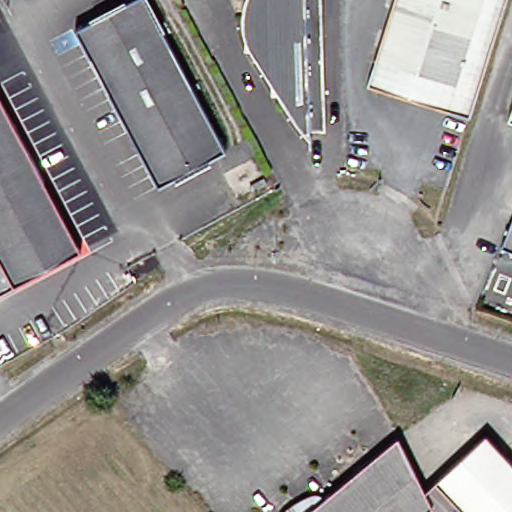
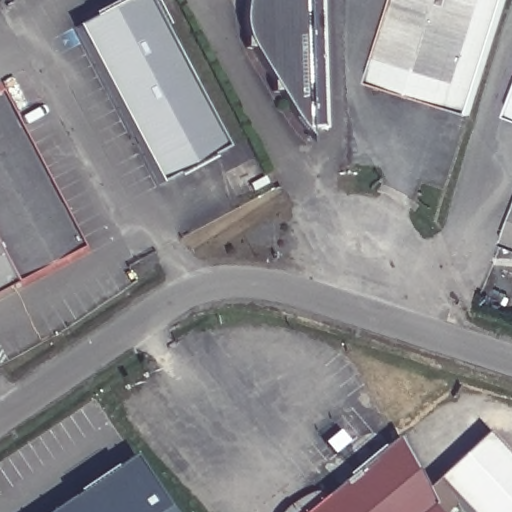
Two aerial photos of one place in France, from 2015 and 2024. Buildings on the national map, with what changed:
unchanged [(232,148),(165,184),(82,27),(133,0),(153,0),(232,148)]
unchanged [(332,129),(317,129),(317,138),(302,120),(257,49),(252,39),(250,30),(249,17),(250,6),(251,0),(327,0),(332,129)]
unchanged [(475,116),(374,84),(401,0),(512,0),(475,116)]
unchanged [(87,250),(0,296),(0,95),(4,92),(87,250)]
unchanged [(512,220),(512,249),(502,245),(512,220)]
unchanged [(439,505),(430,512),(311,512),(404,435),(430,489),(439,505)]
unchanged [(482,442),(504,443),(512,452),(512,512),(473,512),(455,491),(439,505),(430,489),(482,442)]
new [(165,512),(49,512),(129,458),(165,512)]

